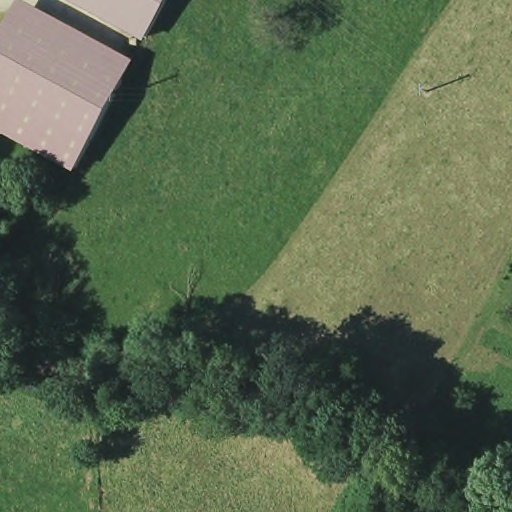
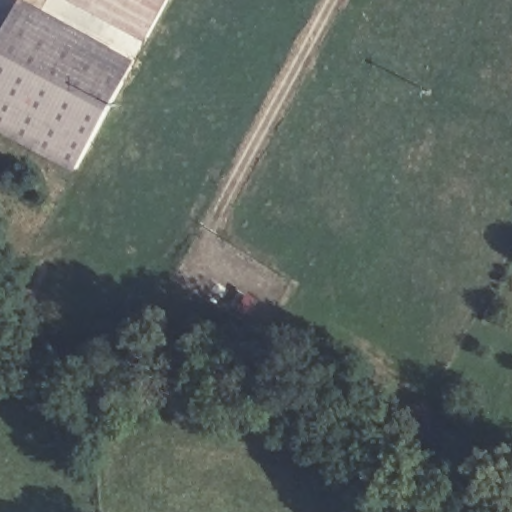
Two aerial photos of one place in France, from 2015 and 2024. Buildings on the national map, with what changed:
unchanged [(94,0),(90,6),(79,0),(94,0)]
unchanged [(90,6),(94,0),(166,0),(145,38),(90,6)]
unchanged [(22,10),(77,40),(30,129),(0,112),(0,52),(22,10)]
unchanged [(132,70),(85,159),(30,129),(77,40),(132,70)]

